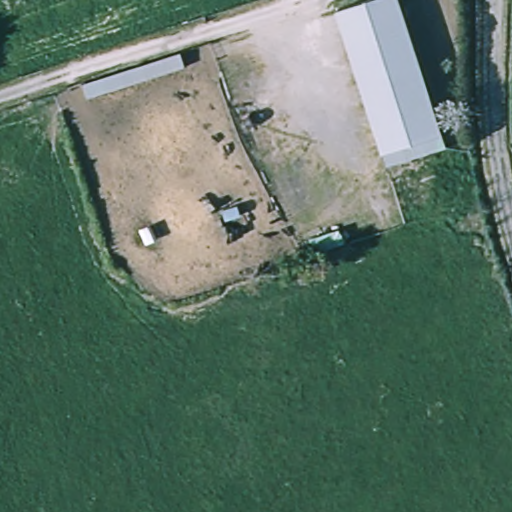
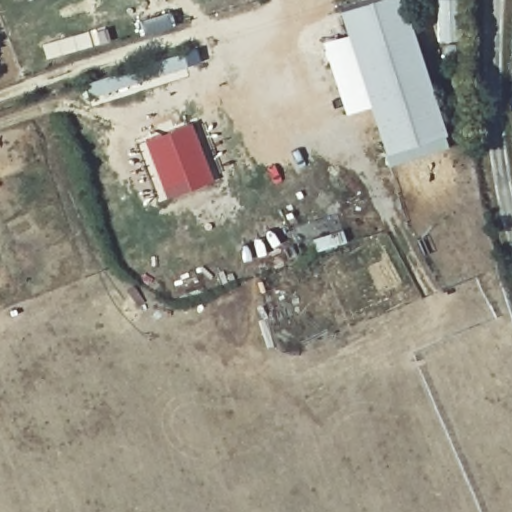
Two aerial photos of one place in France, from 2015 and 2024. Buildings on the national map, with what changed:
unchanged [(369,0),(399,0),(447,146),(388,166),(337,10),(369,0)]
unchanged [(181,52),(186,66),(89,97),(85,82),(181,52)]
new [(211,178),(164,196),(143,139),(188,119),(211,178)]

